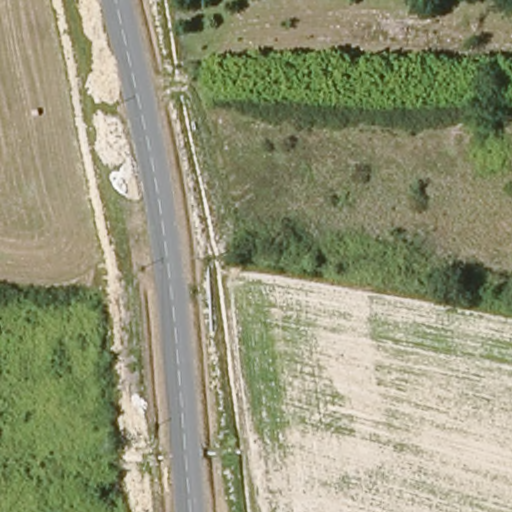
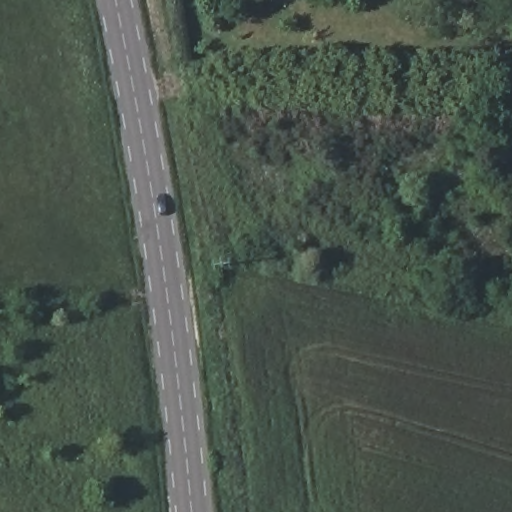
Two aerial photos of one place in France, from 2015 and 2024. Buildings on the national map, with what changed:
[]

